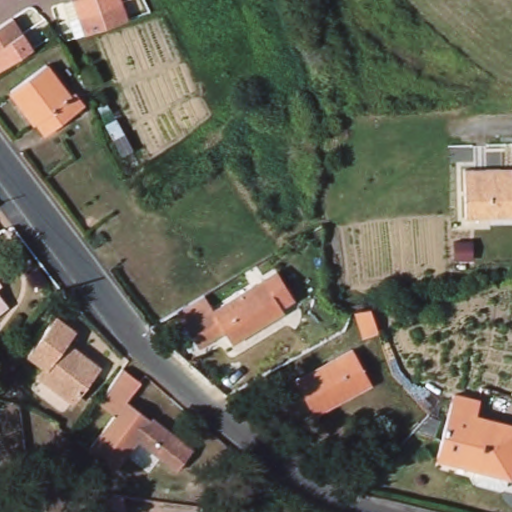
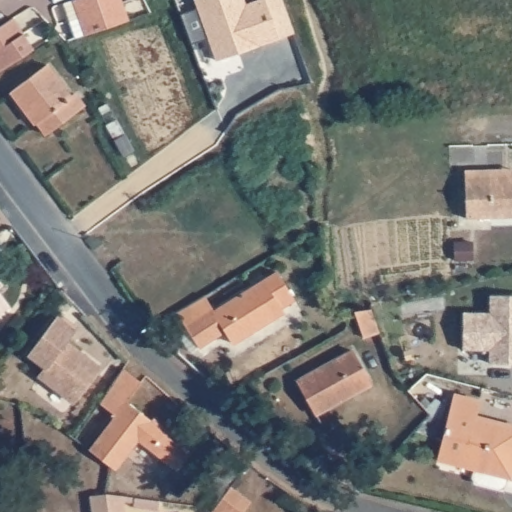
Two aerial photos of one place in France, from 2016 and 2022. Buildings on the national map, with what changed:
unchanged [(76,18),(69,0),(121,0),(129,21),(90,35),(83,16),(76,18)]
new [(245,0),(246,3),(255,0),(266,0),(279,38),(217,61),(194,0),(245,0)]
unchanged [(34,51),(8,66),(0,70),(0,27),(13,20),(34,51)]
unchanged [(43,134),(34,121),(30,124),(6,93),(24,79),(43,66),(65,96),(70,93),(80,107),(76,110),(43,134)]
unchanged [(494,172),(507,171),(508,180),(512,179),(512,219),(463,220),(461,172),(494,172)]
unchanged [(180,334),(189,329),(176,310),(178,309),(197,298),(203,295),(213,311),(279,270),(297,298),(284,306),(287,311),(234,343),(227,331),(200,346),(193,351),(180,334)]
new [(486,364),(486,350),(459,350),(459,313),(487,313),(487,296),(512,296),(512,364),(509,364),(486,364)]
unchanged [(0,298),(8,309),(0,314),(0,298)]
unchanged [(372,343),(361,317),(377,310),(387,337),(372,343)]
unchanged [(76,328),(65,341),(98,368),(73,401),(39,375),(46,365),(28,351),(57,312),(76,328)]
unchanged [(371,383),(314,414),(295,381),(352,350),(371,383)]
unchanged [(144,377),(130,397),(194,445),(179,470),(138,440),(114,473),(87,452),(116,413),(99,402),(125,366),(144,377)]
unchanged [(453,395),(479,401),(474,421),(512,431),(512,458),(506,485),(500,488),(476,482),(473,477),(476,464),(438,454),(453,395)]
unchanged [(212,508),(215,503),(223,494),(244,511),(242,512),(208,512),(212,508)]

